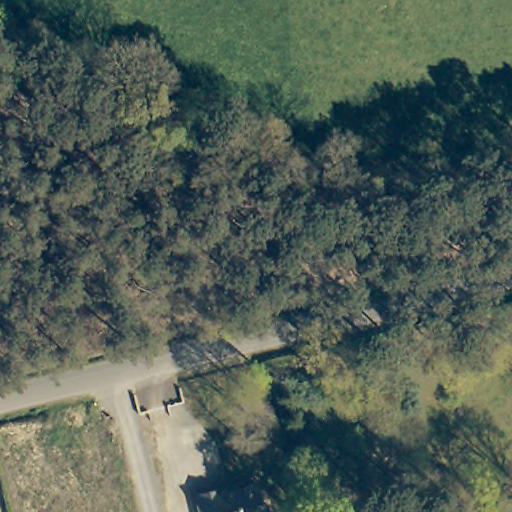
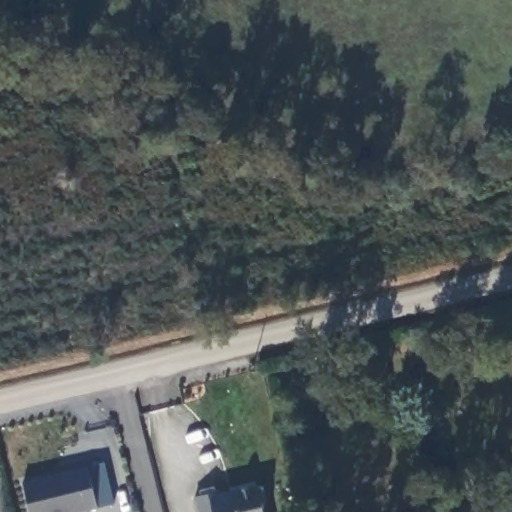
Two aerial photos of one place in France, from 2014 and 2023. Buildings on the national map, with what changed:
unchanged [(371,362),(385,359),(388,374),(375,376),(350,382),(346,368),(371,362)]
new [(80,512),(31,512),(24,481),(88,465),(100,507),(80,512)]
unchanged [(222,489),(224,493),(255,484),(260,504),(265,502),(268,512),(197,512),(193,496),(222,489)]

